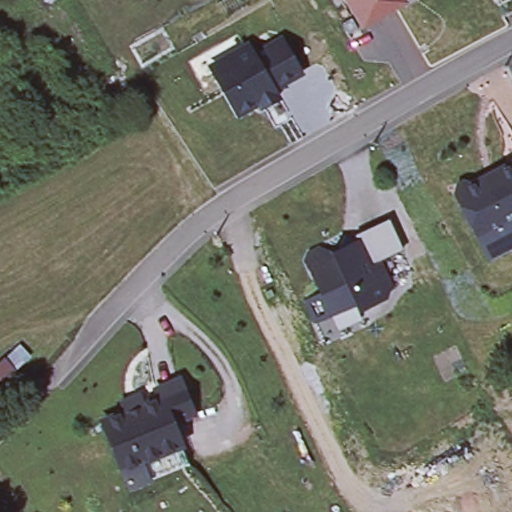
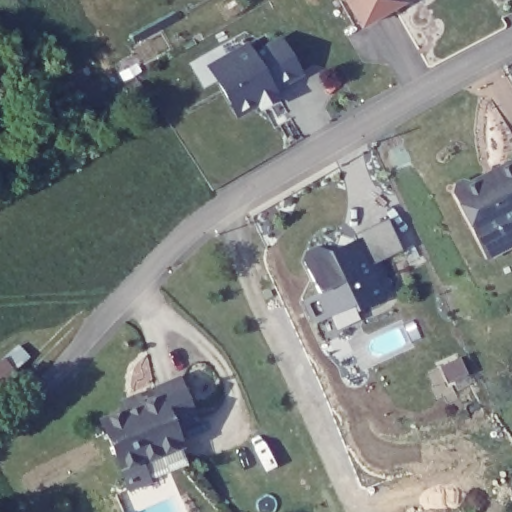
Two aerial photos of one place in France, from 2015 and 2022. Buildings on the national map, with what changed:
unchanged [(395,5),(367,21),(354,0),(413,0),(397,9),(395,5)]
unchanged [(259,103),(239,114),(211,67),(249,45),(254,54),(282,38),(301,73),(274,88),(276,93),(279,97),(261,107),(259,103)]
unchanged [(474,235),(476,228),(465,206),(458,203),(454,197),(456,191),(463,187),(470,189),(479,185),(480,187),(497,179),(495,176),(512,168),(512,222),(506,225),(512,236),(512,246),(487,260),(477,240),(474,235)]
unchanged [(309,251),(318,247),(329,251),(357,238),(355,235),(387,221),(400,249),(369,264),(384,297),(357,310),(362,322),(322,340),(302,299),(318,291),(305,262),(309,251)]
unchanged [(20,372),(25,377),(0,399),(0,355),(4,352),(20,372)]
unchanged [(170,431),(180,454),(122,479),(101,430),(124,421),(121,413),(155,398),(178,389),(192,422),(170,431)]
unchanged [(188,473),(130,498),(122,479),(180,454),(188,473)]

